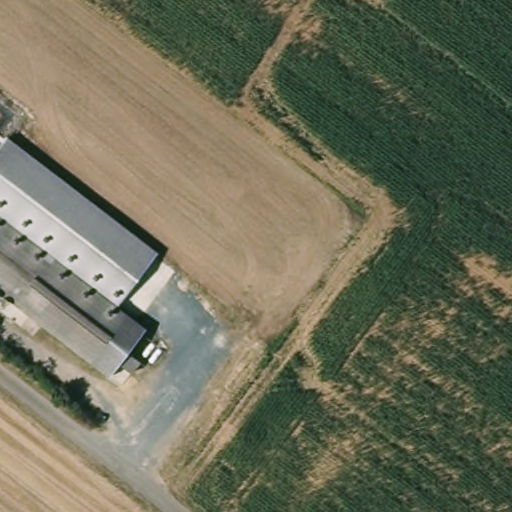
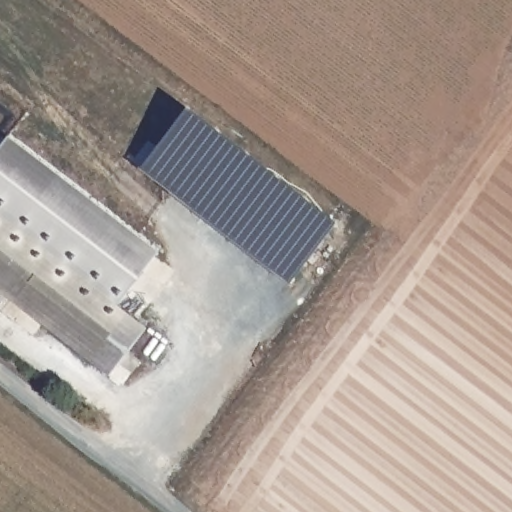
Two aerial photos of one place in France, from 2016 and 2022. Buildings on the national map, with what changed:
new [(140,169),(187,109),(337,223),(288,286),(140,169)]
unchanged [(9,131),(160,247),(116,302),(0,212),(0,144),(9,131)]
unchanged [(116,302),(151,329),(114,381),(0,290),(0,212),(116,302)]

